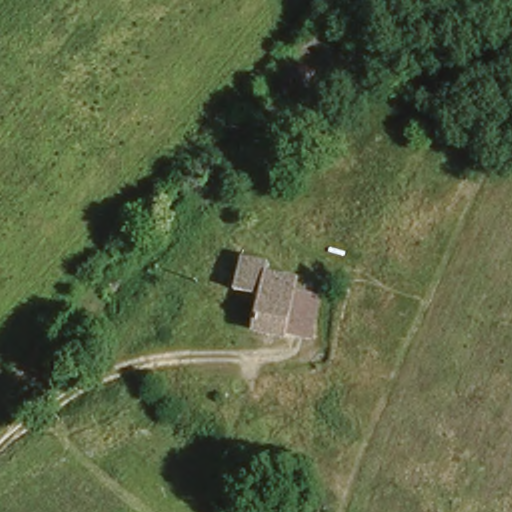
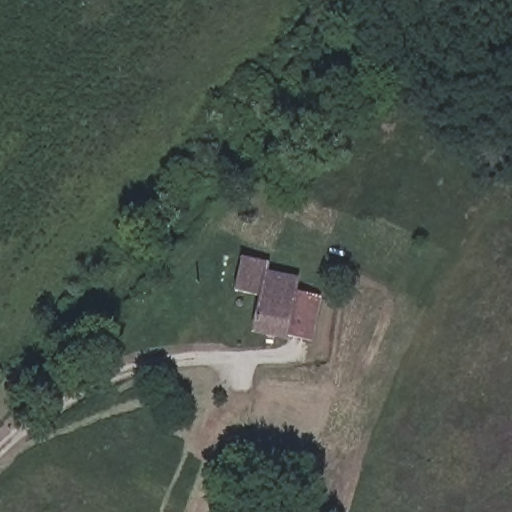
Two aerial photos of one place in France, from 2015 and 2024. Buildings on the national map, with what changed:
unchanged [(255,337),(260,306),(238,302),(245,268),(268,272),(272,255),(302,261),(297,290),(287,343),(255,337)]
unchanged [(324,295),(313,348),(287,343),(297,290),(324,295)]

